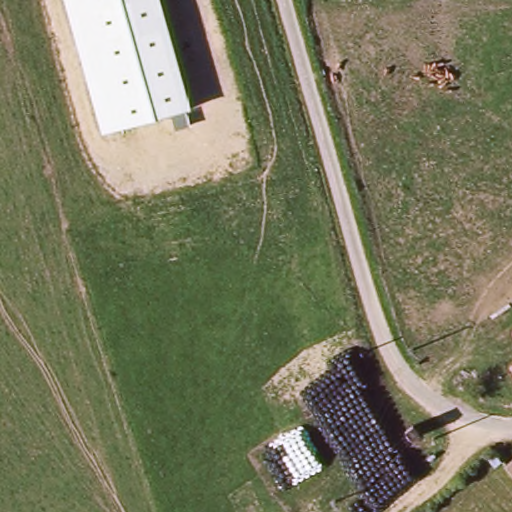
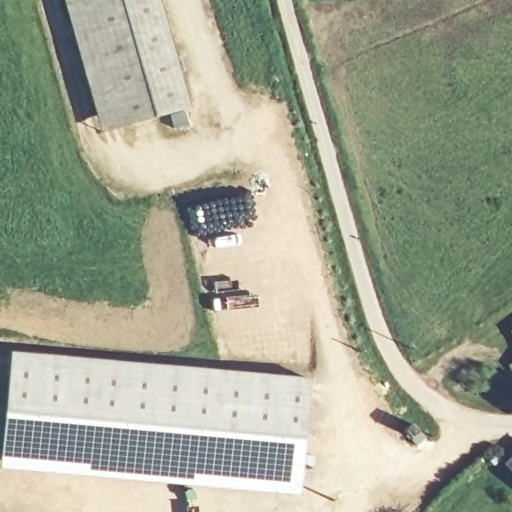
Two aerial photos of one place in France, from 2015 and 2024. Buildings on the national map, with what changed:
unchanged [(191,108),(102,132),(64,0),(160,0),(191,108)]
unchanged [(512,327),(512,330),(511,328),(512,327)]
new [(299,493),(2,467),(12,352),(310,379),(299,493)]
unchanged [(512,359),(512,370),(507,363),(512,359)]
unchanged [(412,414),(416,422),(420,424),(408,434),(399,425),(412,414)]
unchanged [(512,466),(512,468),(511,467),(512,466)]

